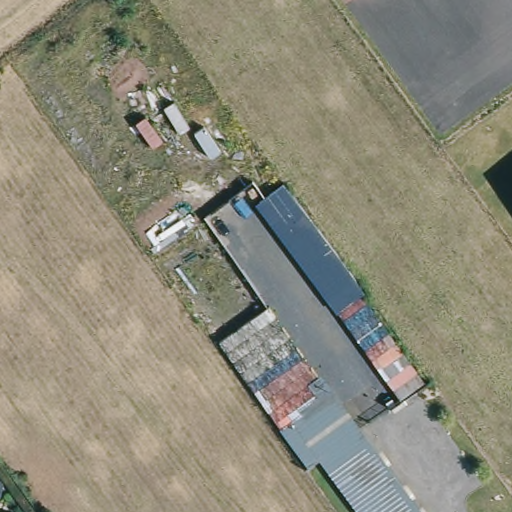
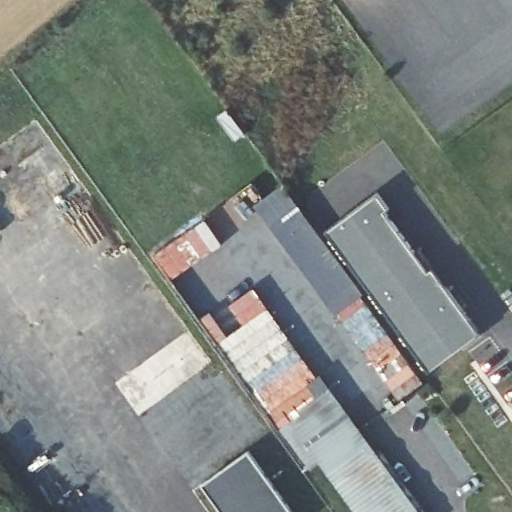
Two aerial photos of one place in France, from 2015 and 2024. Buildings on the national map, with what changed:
unchanged [(356,281),(354,283),(329,300),(256,204),(284,184),(356,281)]
new [(396,211),(392,214),(422,253),(428,249),(457,287),(455,288),(490,335),(438,374),(332,234),(384,195),(396,211)]
new [(207,219),(225,244),(173,280),(155,255),(207,219)]
unchanged [(427,384),(402,401),(329,300),(354,283),(427,384)]
unchanged [(327,457),(308,469),(220,344),(270,306),(319,374),(324,369),(367,428),(327,457)]
unchanged [(367,428),(429,512),(368,512),(327,457),(367,428)]
new [(207,484),(250,453),(292,512),(226,512),(207,484)]

